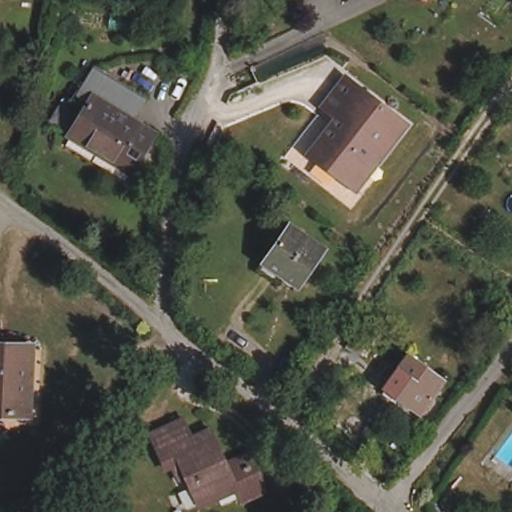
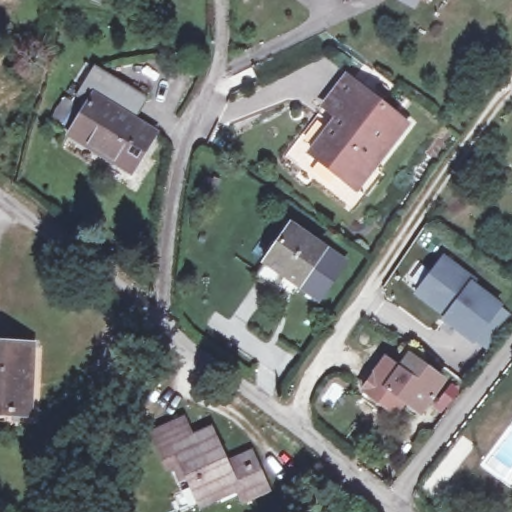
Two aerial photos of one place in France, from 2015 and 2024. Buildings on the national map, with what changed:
unchanged [(62,132),(81,101),(71,95),(90,65),(143,95),(128,120),(152,134),(130,173),(62,132)]
unchanged [(318,152),(339,124),(345,116),(331,105),(352,78),(412,123),(381,163),(363,187),(355,181),(318,152)]
unchanged [(297,286),(262,260),(289,222),(324,247),(297,286)]
new [(324,247),(348,262),(320,303),(297,286),(324,247)]
new [(444,317),(413,294),(443,254),(479,281),(477,284),(504,304),(474,344),(442,321),(444,317)]
unchanged [(0,424),(0,357),(29,358),(26,425),(0,424)]
unchanged [(383,395),(388,388),(410,357),(443,381),(421,411),(411,405),(406,411),(383,395)]
unchanged [(168,463),(162,466),(146,430),(178,415),(187,434),(205,426),(215,447),(212,448),(218,461),(246,449),(263,487),(236,499),(232,488),(195,504),(181,474),(174,477),(168,463)]

